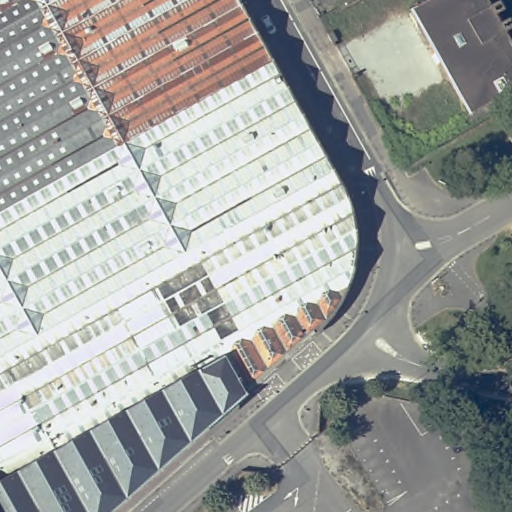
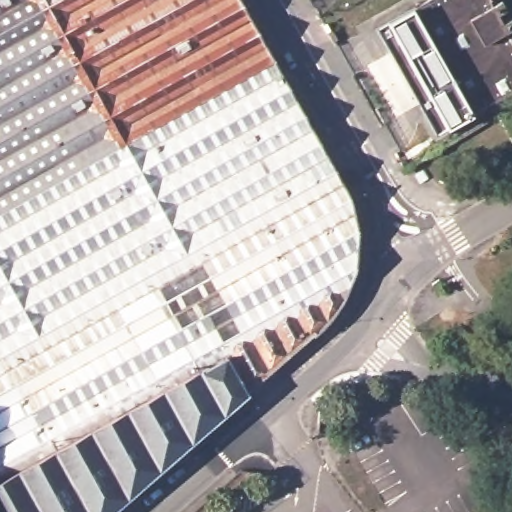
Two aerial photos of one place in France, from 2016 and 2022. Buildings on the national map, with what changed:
unchanged [(240,0),(318,139),(338,174),(346,190),(350,202),(355,214),(356,223),(358,234),(359,244),(359,255),(358,266),(357,277),(354,286),(347,298),(338,309),(328,322),(311,340),(113,512),(0,512),(0,0),(240,0)]
unchanged [(475,111),(414,9),(412,11),(410,9),(426,0),(501,0),(503,5),(495,10),(500,19),(508,14),(512,20),(512,25),(506,29),(511,38),(512,38),(512,93),(474,115),(472,113),(475,111)]
new [(373,28),(385,23),(410,9),(412,11),(414,9),(475,111),(472,113),(474,115),(447,130),(434,138),(373,28)]

